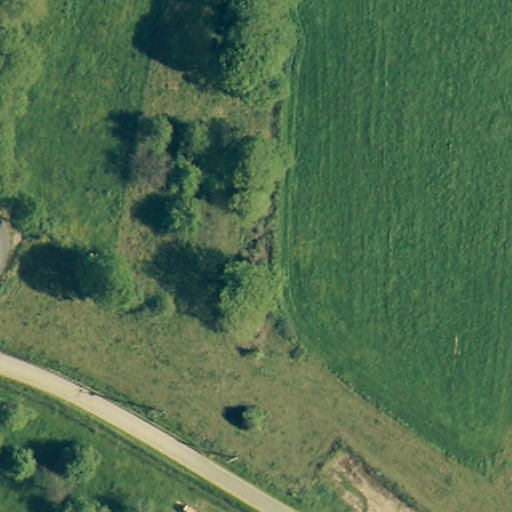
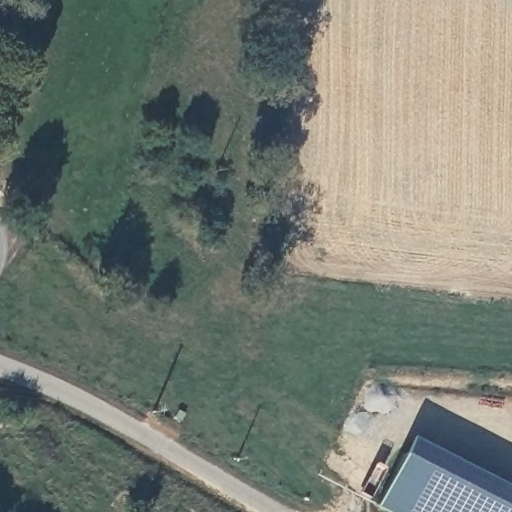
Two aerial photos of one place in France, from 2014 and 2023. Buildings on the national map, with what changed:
new [(389,512),(376,505),(413,437),(512,488),(512,512),(389,512)]

